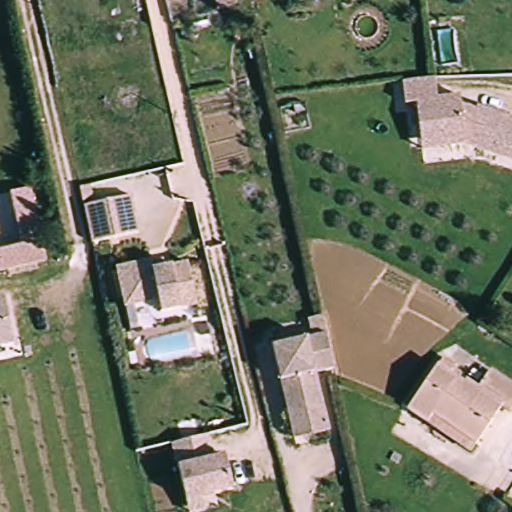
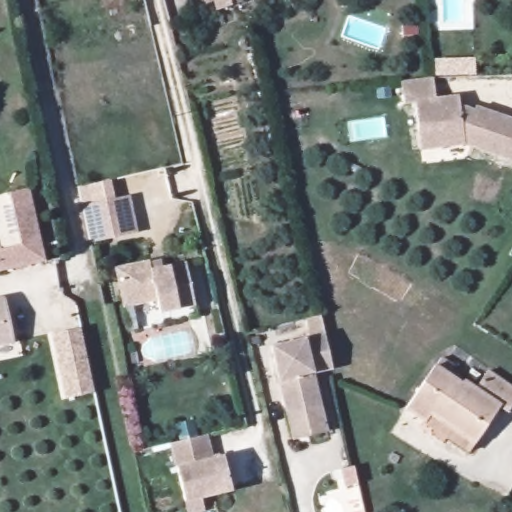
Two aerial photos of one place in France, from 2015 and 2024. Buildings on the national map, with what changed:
unchanged [(228,6),(221,8),(206,11),(204,0),(227,0),(228,6)]
unchanged [(415,103),(405,105),(402,82),(435,78),(437,100),(460,97),(461,107),(477,108),(512,122),(512,163),(465,145),(440,148),(420,150),(419,133),(415,103)]
unchanged [(30,186),(46,260),(0,269),(0,249),(22,244),(11,190),(30,186)]
unchanged [(118,196),(120,201),(126,233),(80,243),(72,206),(118,196)]
unchanged [(140,263),(151,261),(153,268),(175,263),(185,305),(150,313),(147,300),(113,307),(105,268),(139,261),(140,263)]
unchanged [(1,335),(0,335),(0,327),(1,335)]
new [(81,328),(95,393),(65,399),(50,336),(81,328)]
unchanged [(295,440),(288,413),(273,347),(326,334),(333,365),(335,369),(315,373),(322,405),(329,432),(295,440)]
unchanged [(512,385),(512,410),(508,415),(502,411),(472,389),(487,368),(512,385)]
unchanged [(425,424),(405,409),(431,370),(460,389),(464,383),(472,389),(502,411),(478,446),(472,456),(425,424)]
unchanged [(186,511),(184,499),(176,466),(171,442),(186,438),(206,434),(212,458),(224,455),(231,489),(200,496),(203,508),(186,511)]

